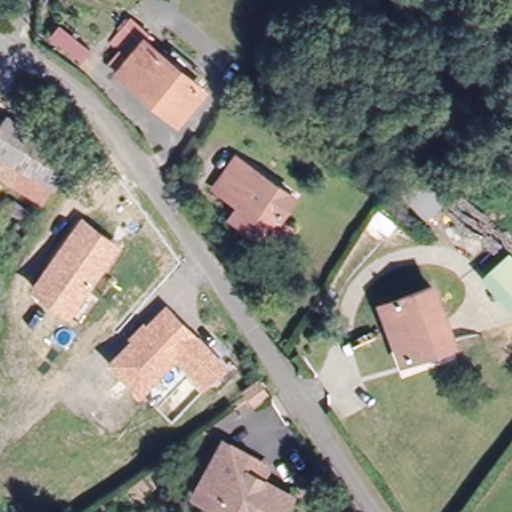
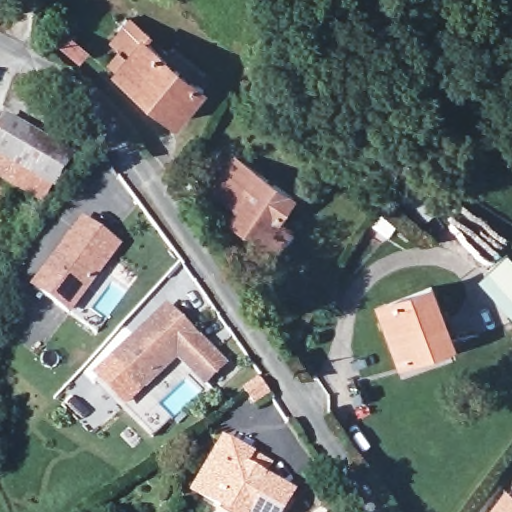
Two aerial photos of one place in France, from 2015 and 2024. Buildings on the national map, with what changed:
unchanged [(194,96),(200,102),(173,127),(122,73),(133,61),(118,45),(136,25),(155,44),(150,49),(169,68),(175,62),(180,57),(206,85),(194,96)]
unchanged [(74,155),(57,186),(0,156),(0,133),(7,120),(74,155)]
unchanged [(0,181),(0,156),(57,186),(46,206),(0,181)]
unchanged [(280,247),(266,239),(232,215),(240,205),(216,189),(237,158),(295,195),(279,219),(293,227),(280,247)]
unchanged [(31,210),(26,220),(9,209),(15,199),(31,210)]
unchanged [(122,243),(70,315),(30,285),(80,215),(122,243)]
unchanged [(512,253),(512,314),(479,279),(509,250),(512,253)]
unchanged [(401,356),(385,302),(431,289),(447,343),(401,356)]
unchanged [(230,363),(206,386),(178,358),(140,395),(110,360),(130,340),(127,335),(145,320),(147,322),(166,303),(230,363)]
unchanged [(258,375),(268,391),(252,405),(239,387),(258,375)]
unchanged [(246,455),(264,463),(260,475),(291,490),(279,512),(224,512),(203,501),(194,496),(206,471),(220,443),(246,455)]
new [(512,485),(512,512),(487,512),(508,482),(512,485)]

